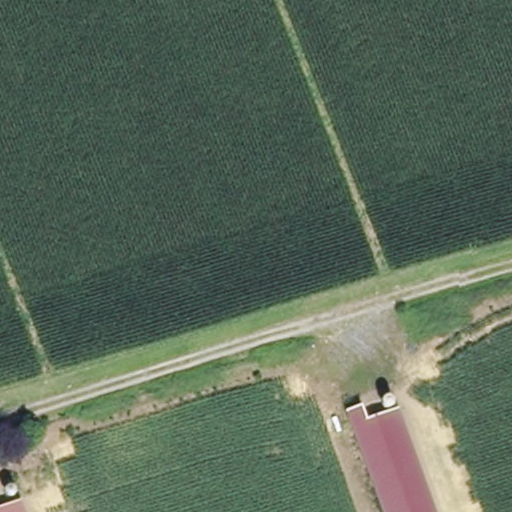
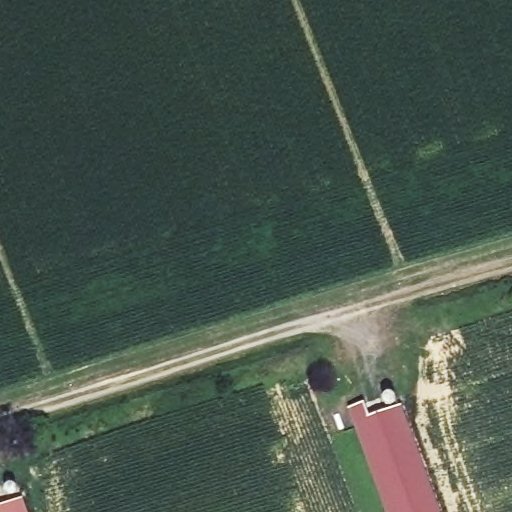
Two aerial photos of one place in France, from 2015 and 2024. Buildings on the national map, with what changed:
unchanged [(439,512),(389,512),(351,407),(373,400),(379,413),(400,406),(439,512)]
unchanged [(20,494),(27,512),(0,512),(0,501),(20,494)]

